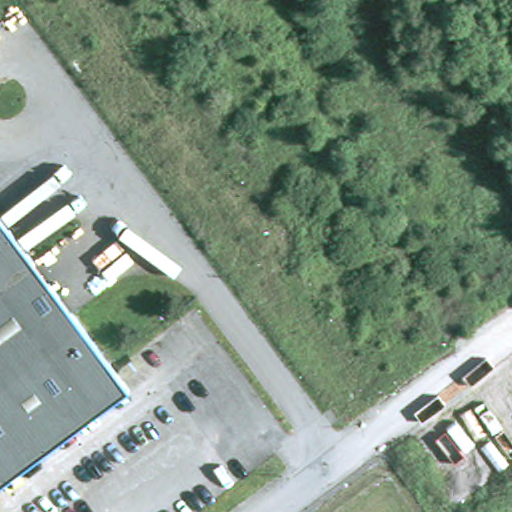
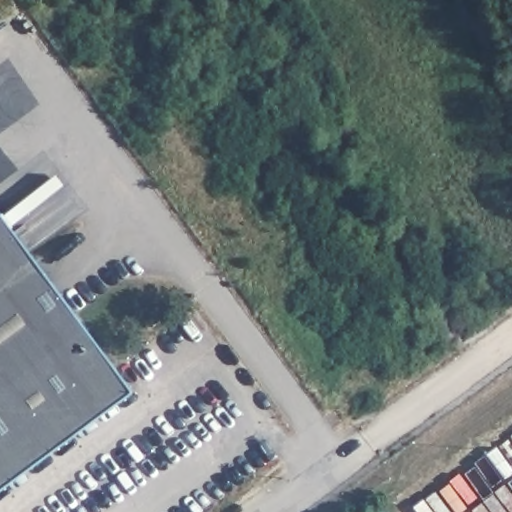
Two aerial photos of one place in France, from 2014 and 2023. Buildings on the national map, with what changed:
unchanged [(129,389),(0,485),(0,215),(129,389)]

